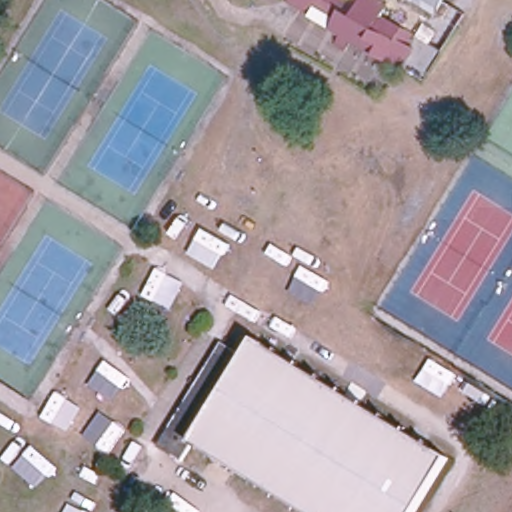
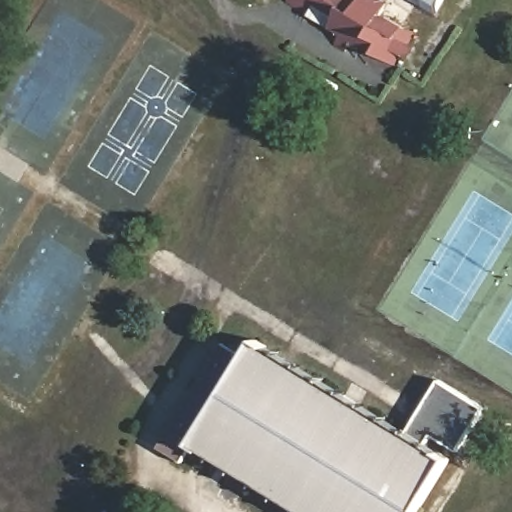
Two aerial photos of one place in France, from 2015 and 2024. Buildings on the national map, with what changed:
unchanged [(389,4),(382,15),(414,33),(409,43),(413,47),(407,58),(401,55),(394,66),(354,42),(348,53),(336,46),(343,35),(288,4),(290,0),(381,0),(389,4)]
unchanged [(442,6),(431,0),(445,0),(442,6)]
unchanged [(158,448),(223,343),(245,357),(255,340),(449,459),(417,512),(303,512),(192,443),(183,462),(158,448)]
new [(489,409),(461,452),(434,436),(428,446),(408,434),(440,379),(489,409)]

